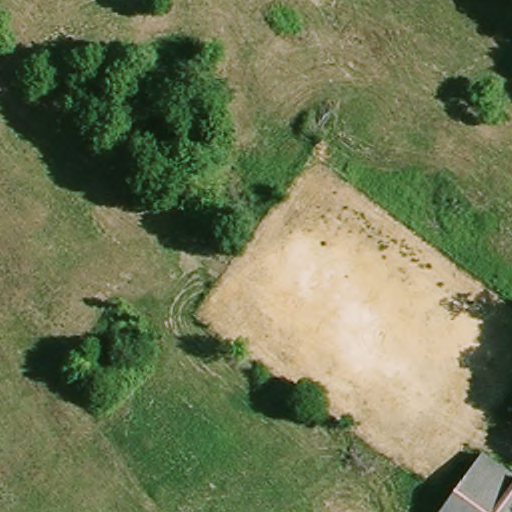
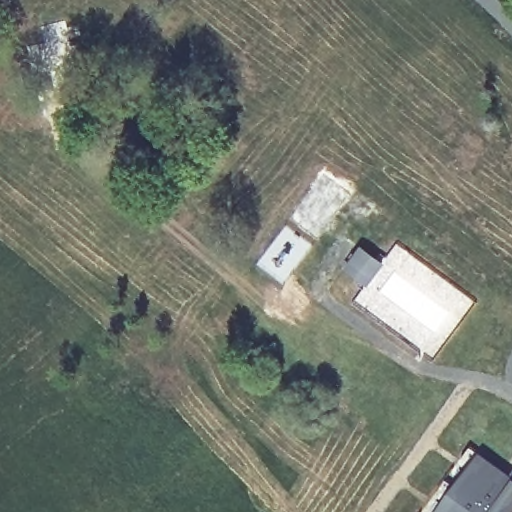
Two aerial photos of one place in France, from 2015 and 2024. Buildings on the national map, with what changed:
new [(340,269),(359,244),(382,261),(396,242),(475,302),(432,358),(354,299),(363,287),(340,269)]
unchanged [(512,477),(512,479),(504,491),(512,497),(512,512),(441,512),(482,455),(512,477)]
unchanged [(504,491),(512,479),(512,497),(504,491)]

